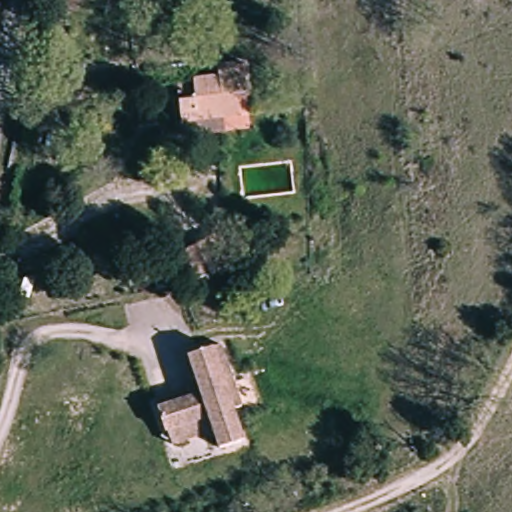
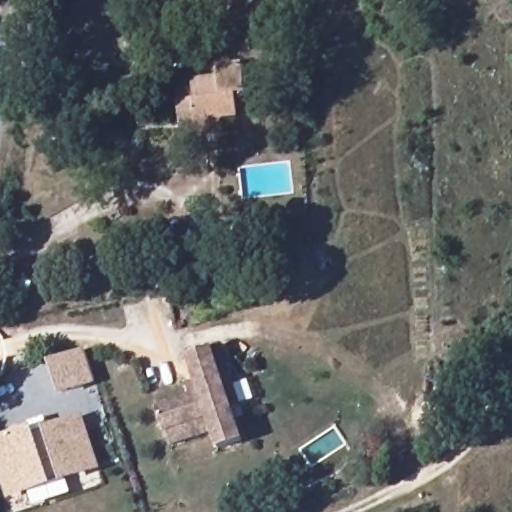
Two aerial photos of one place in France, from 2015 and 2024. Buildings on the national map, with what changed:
unchanged [(182,124),(183,108),(185,67),(212,69),(213,60),(235,62),(232,111),(223,110),(222,125),(182,124)]
unchanged [(224,266),(189,281),(178,256),(213,241),(224,266)]
unchanged [(203,391),(190,357),(226,344),(256,434),(221,446),(217,432),(176,447),(162,406),(203,391)]
new [(86,356),(97,389),(60,398),(52,366),(86,356)]
new [(8,500),(0,474),(0,444),(30,434),(31,439),(81,423),(97,472),(63,483),(46,488),(8,500)]

